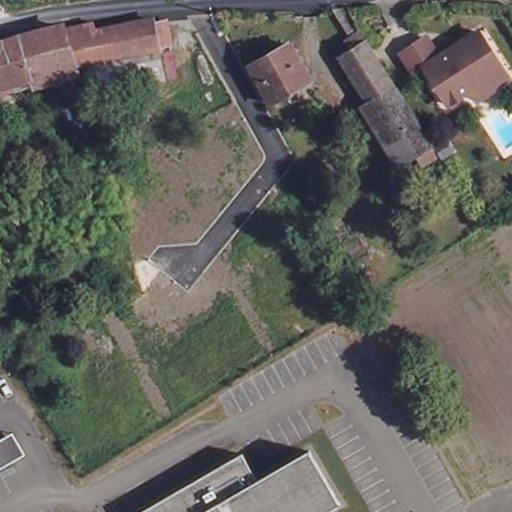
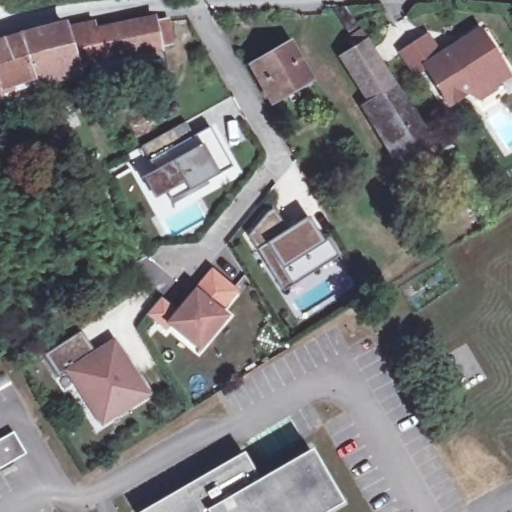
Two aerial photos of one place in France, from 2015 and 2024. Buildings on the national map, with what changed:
unchanged [(7,89),(0,92),(0,48),(63,30),(65,35),(93,28),(95,35),(154,25),(155,28),(169,25),(174,51),(160,54),(160,56),(43,79),(7,89)]
unchanged [(480,96),(473,87),(451,101),(426,64),(416,71),(402,50),(427,34),(441,54),(480,28),(510,72),(493,83),(496,86),(480,96)]
unchanged [(342,58),(357,49),(367,42),(394,85),(368,100),(342,58)]
unchanged [(252,68),(290,46),(311,81),(273,103),(252,68)]
unchanged [(394,85),(414,118),(381,139),(370,121),(378,116),(368,100),(394,85)]
unchanged [(414,118),(431,145),(398,166),(381,139),(414,118)]
new [(187,126),(195,141),(211,131),(234,171),(174,206),(143,152),(175,134),(187,126)]
new [(320,271),(287,293),(273,273),(277,271),(265,253),(261,255),(252,241),(271,217),(277,213),(291,234),(311,220),(328,246),(337,260),(320,271)]
new [(165,305),(182,319),(216,277),(240,296),(225,316),(231,322),(205,354),(174,329),(170,334),(153,320),(165,305)]
new [(96,412),(75,380),(65,386),(50,364),(88,339),(102,360),(120,348),(155,401),(125,422),(110,432),(96,412)]
unchanged [(243,455),(258,481),(310,451),(341,505),(328,512),(145,512),(243,455)]

